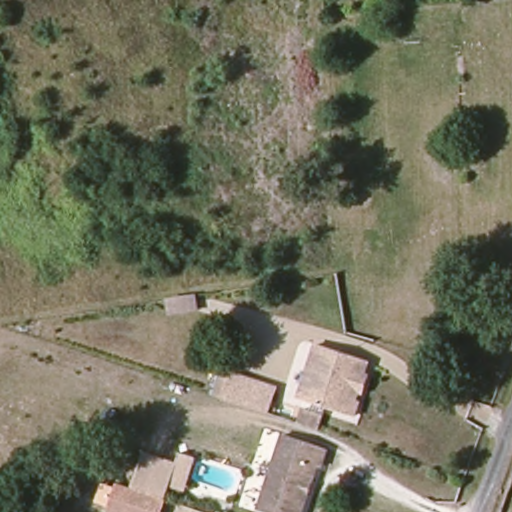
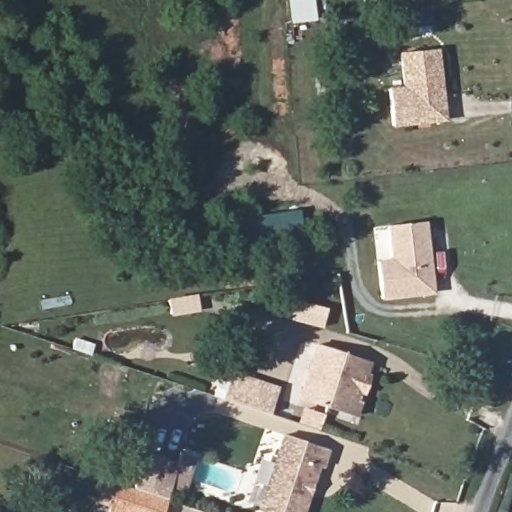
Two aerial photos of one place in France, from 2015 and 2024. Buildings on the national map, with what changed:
new [(393,126),(389,87),(403,86),(400,52),(439,48),(447,121),(393,126)]
new [(383,299),(378,260),(391,258),(387,225),(427,221),(436,294),(383,299)]
unchanged [(201,288),(203,301),(176,306),(174,292),(201,288)]
unchanged [(307,373),(316,344),(363,360),(355,388),(307,373)]
unchanged [(353,397),(358,399),(353,415),(298,398),(307,373),(355,388),(353,397)]
unchanged [(230,375),(274,390),(271,400),(267,413),(221,399),(226,386),(230,375)]
unchanged [(302,407),(320,412),(320,416),(317,431),(296,424),(301,410),(302,407)]
unchanged [(284,453),(288,439),(334,454),(330,468),(325,467),(310,512),(265,512),(284,453)]
unchanged [(145,452),(177,462),(180,454),(196,458),(184,490),(170,486),(165,499),(134,488),(145,452)]
unchanged [(160,512),(109,512),(118,483),(134,488),(165,499),(160,512)]

